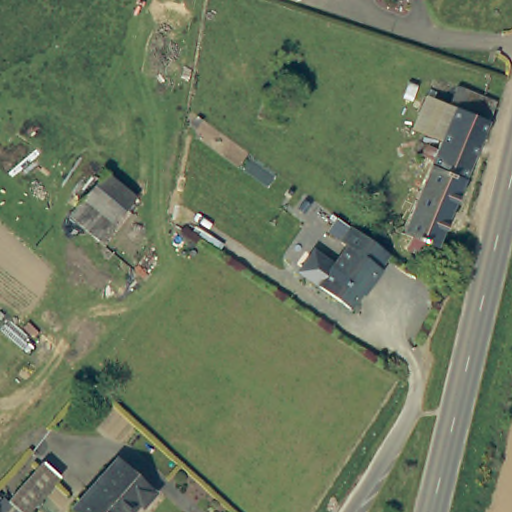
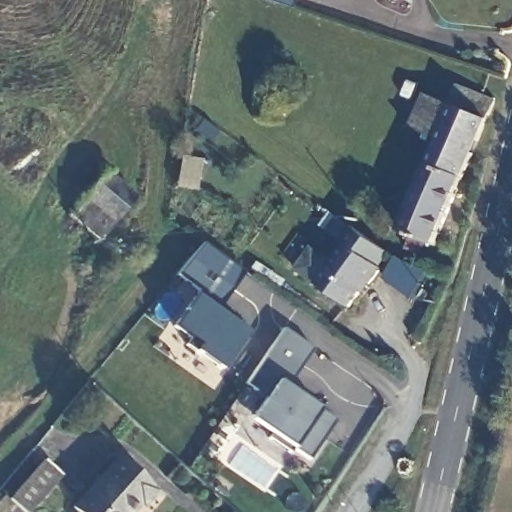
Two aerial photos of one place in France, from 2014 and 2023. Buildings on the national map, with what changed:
unchanged [(445,104),(452,85),(491,101),(482,120),(458,178),(430,245),(418,241),(397,232),(425,164),(435,139),(449,106),(446,104),(445,104)]
unchanged [(435,139),(407,126),(421,94),(445,104),(446,104),(449,106),(435,139)]
unchanged [(70,214),(104,171),(136,197),(102,240),(70,214)]
unchanged [(386,273),(374,290),(372,287),(354,312),(302,275),(318,254),(338,268),(352,250),(346,246),(332,236),(342,222),(355,232),(356,231),(393,258),(383,272),(386,273)]
new [(217,310),(246,333),(220,370),(193,350),(197,345),(171,326),(195,295),(197,291),(175,276),(203,242),(242,272),(217,310)]
new [(288,387),(318,407),(335,421),(309,457),(292,446),(252,421),(266,397),(246,383),(282,330),(312,348),(288,387)]
unchanged [(72,503),(117,452),(155,487),(142,501),(139,497),(126,512),(75,512),(79,508),(72,503)]
unchanged [(56,475),(23,512),(18,512),(4,499),(39,460),(56,475)]
unchanged [(0,512),(0,497),(17,512),(0,512)]

